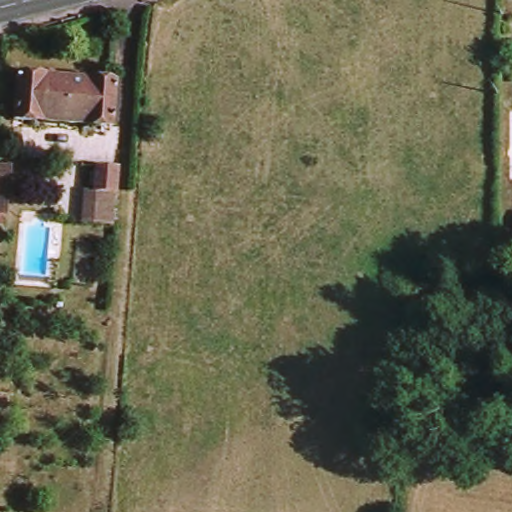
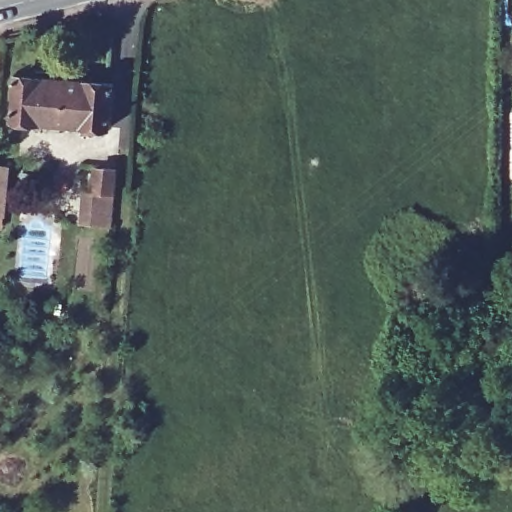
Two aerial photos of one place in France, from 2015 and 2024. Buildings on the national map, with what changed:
unchanged [(14,117),(18,74),(65,77),(59,122),(14,117)]
unchanged [(112,83),(108,126),(59,122),(65,77),(112,83)]
unchanged [(0,223),(0,164),(11,165),(6,224),(0,223)]
unchanged [(86,194),(95,195),(99,164),(120,166),(113,227),(84,224),(86,194)]

